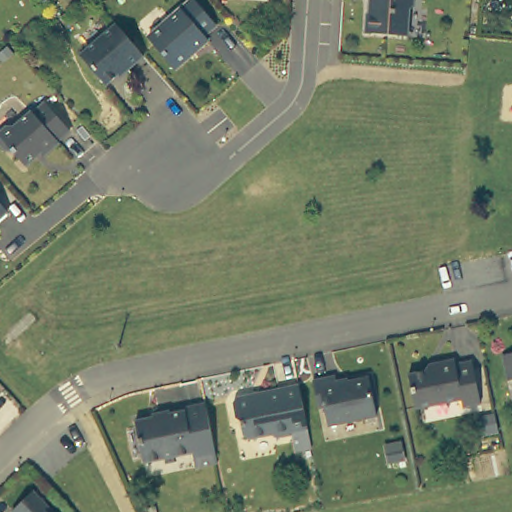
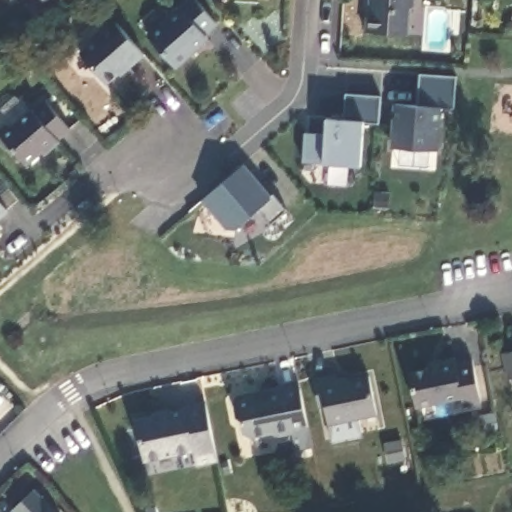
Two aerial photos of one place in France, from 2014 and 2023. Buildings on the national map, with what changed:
unchanged [(201,34),(205,39),(172,68),(145,36),(187,0),(192,0),(213,24),(201,34)]
unchanged [(406,10),(404,35),(362,32),(363,12),(368,8),(368,0),(410,0),(410,6),(406,10)]
unchanged [(137,49),(141,55),(125,69),(123,67),(104,84),(78,54),(113,23),(137,49)]
new [(453,108),(441,106),(436,150),(389,146),(392,102),(418,105),(420,73),(455,77),(453,108)]
new [(377,124),(364,123),(360,167),(321,165),(299,161),(301,132),(325,133),(326,118),(344,120),(344,93),(379,96),(377,124)]
unchanged [(67,129),(55,140),(57,141),(41,155),(38,151),(23,165),(10,150),(3,149),(0,146),(0,129),(5,124),(12,125),(29,110),(31,111),(43,101),(67,129)]
new [(272,225),(261,210),(238,228),(224,227),(200,199),(242,162),(285,210),(272,225)]
unchanged [(5,210),(0,214),(0,204),(5,210)]
unchanged [(503,357),(512,355),(512,383),(509,384),(503,357)]
unchanged [(457,367),(472,364),(481,408),(464,412),(462,404),(415,412),(407,377),(434,372),(433,366),(456,362),(457,367)]
unchanged [(338,386),(368,383),(376,419),(329,429),(323,408),(317,409),(311,382),(335,379),(338,386)]
unchanged [(306,432),(291,437),(291,439),(273,443),(272,439),(249,442),(242,439),(238,421),(232,418),(228,399),(243,395),(247,400),(261,397),(261,391),(297,385),(306,432)]
unchanged [(217,463),(197,467),(194,453),(143,463),(134,420),(184,410),(184,403),(204,399),(217,463)]
unchanged [(499,432),(481,436),(478,415),(495,412),(499,432)]
unchanged [(51,512),(11,512),(9,510),(31,492),(51,512)]

